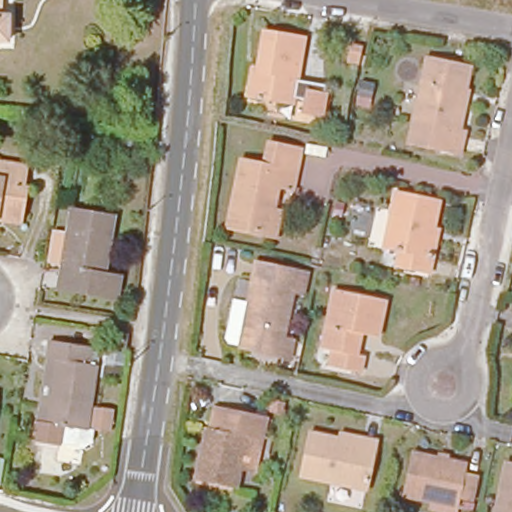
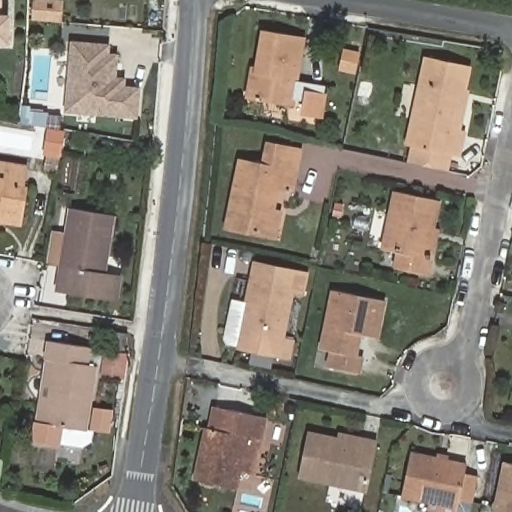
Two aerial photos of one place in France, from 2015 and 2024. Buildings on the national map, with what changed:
new [(34,0),(62,1),(61,20),(34,17),(34,0)]
unchanged [(7,21),(7,45),(0,45),(0,21),(7,21)]
unchanged [(299,99),(297,105),(252,99),(256,72),(261,74),(268,30),(309,37),(301,80),(299,99)]
new [(139,119),(65,112),(72,41),(111,44),(110,52),(119,52),(117,76),(127,77),(126,85),(141,86),(139,119)]
unchanged [(468,133),(464,154),(413,142),(431,60),(474,69),(461,131),(464,132),(468,133)]
unchanged [(329,94),(324,117),(308,115),(313,91),(329,94)]
unchanged [(88,136),(85,155),(72,153),(75,134),(88,136)]
unchanged [(297,190),(283,186),(277,210),(285,212),(280,236),(231,226),(244,162),(268,166),(273,145),(305,151),(297,190)]
unchanged [(23,176),(20,195),(24,196),(17,235),(0,232),(0,173),(23,176)]
unchanged [(432,258),(436,260),(432,275),(400,267),(403,252),(388,249),(400,191),(444,200),(432,258)]
unchanged [(120,278),(116,298),(58,289),(71,209),(114,216),(104,275),(120,278)]
unchanged [(294,291),(284,339),(280,356),(236,346),(254,263),(307,275),(303,293),(294,291)]
unchanged [(390,306),(383,342),(354,337),(350,359),(368,362),(365,378),(333,371),(336,356),(325,354),(338,295),(390,306)]
unchanged [(112,331),(125,333),(127,334),(125,350),(110,347),(112,331)]
unchanged [(96,438),(88,444),(64,440),(64,442),(39,438),(42,418),(51,420),(61,355),(52,353),(55,336),(94,342),(91,360),(100,361),(90,425),(98,427),(96,438)]
unchanged [(211,452),(215,452),(220,429),(224,407),(275,417),(263,471),(249,468),(245,488),(205,480),(211,452)]
unchanged [(366,444),(382,447),(371,495),(303,481),(312,438),(344,445),(366,449),(366,444)]
unchanged [(465,483),(478,486),(473,512),(471,512),(459,510),(459,512),(429,512),(402,506),(411,463),(466,475),(465,483)]
unchanged [(512,512),(501,512),(508,477),(512,478),(512,512)]

